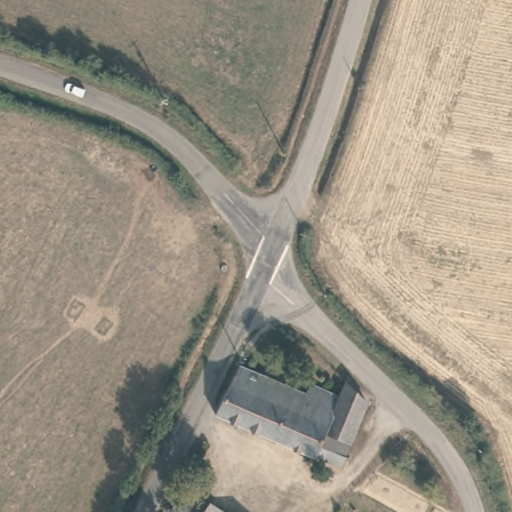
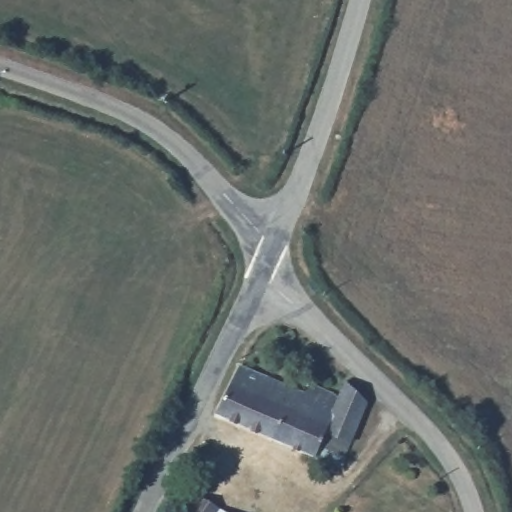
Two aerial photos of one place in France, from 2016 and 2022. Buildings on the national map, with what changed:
unchanged [(348,454),(323,443),(317,456),(216,412),(239,362),(304,391),(309,380),(332,391),(335,383),(344,387),(348,380),(371,402),(348,454)]
unchanged [(187,487),(228,512),(179,512),(173,508),(187,487)]

